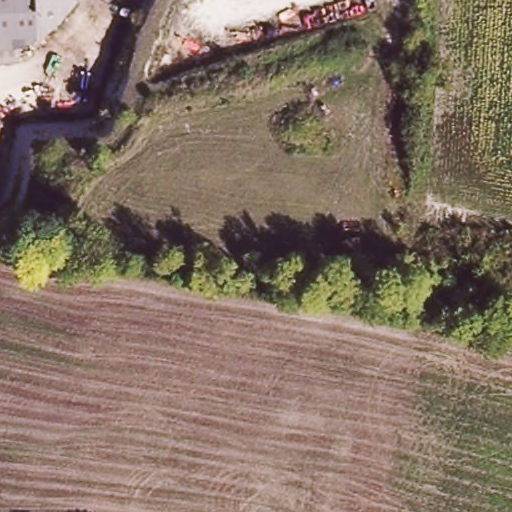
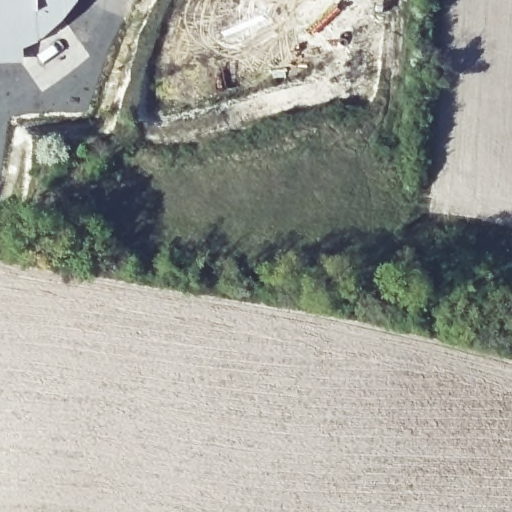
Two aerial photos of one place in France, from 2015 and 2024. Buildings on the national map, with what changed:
unchanged [(0,0),(40,0),(42,37),(42,43),(23,51),(23,61),(0,62),(0,0)]
unchanged [(47,34),(46,35),(42,37),(40,0),(76,0),(65,15),(47,34)]

